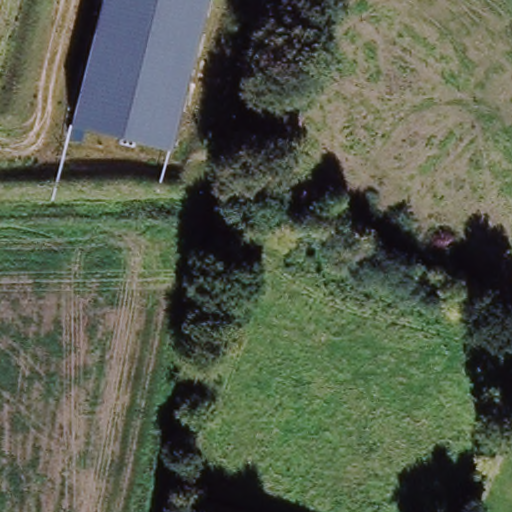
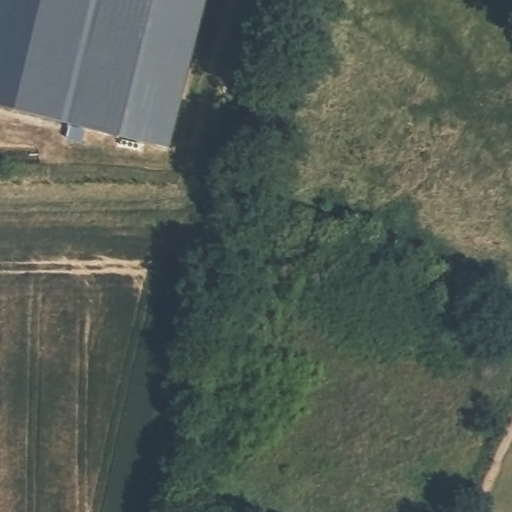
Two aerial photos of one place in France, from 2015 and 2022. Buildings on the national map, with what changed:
new [(0,105),(0,0),(100,0),(69,124),(0,105)]
unchanged [(100,0),(207,0),(170,149),(69,124),(100,0)]

